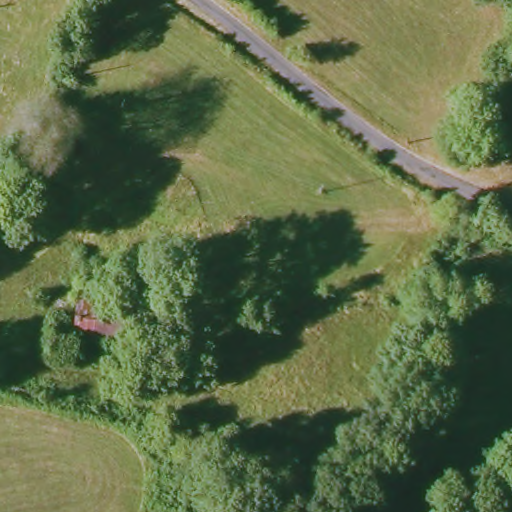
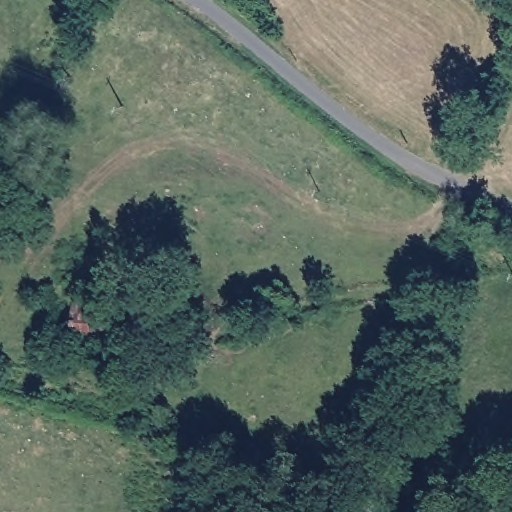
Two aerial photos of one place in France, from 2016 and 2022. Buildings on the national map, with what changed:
unchanged [(164,312),(163,327),(152,327),(149,360),(124,357),(125,347),(105,346),(105,355),(75,352),(77,301),(164,312)]

